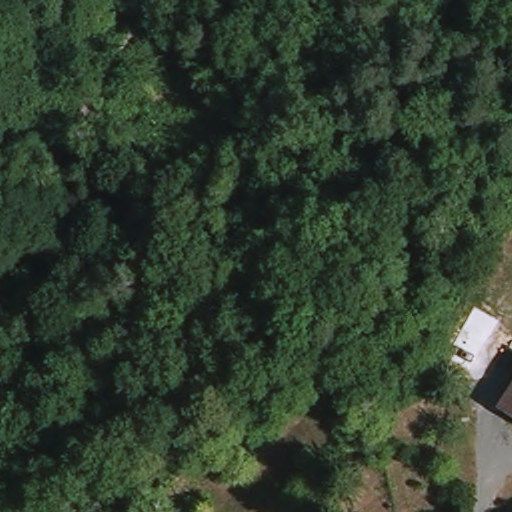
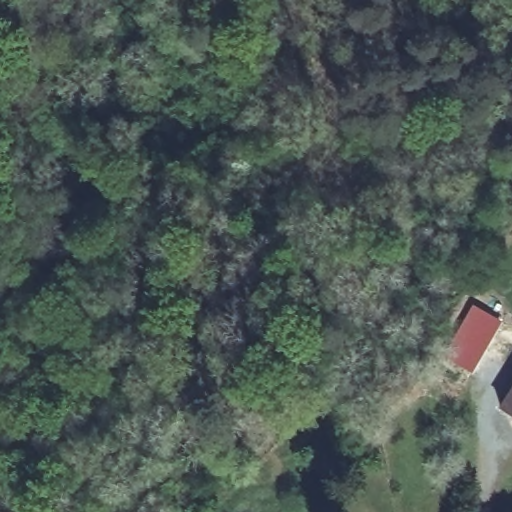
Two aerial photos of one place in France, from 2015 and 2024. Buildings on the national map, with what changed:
new [(479,303),(504,318),(471,372),(446,357),(479,303)]
unchanged [(498,405),(512,383),(512,414),(498,405)]

